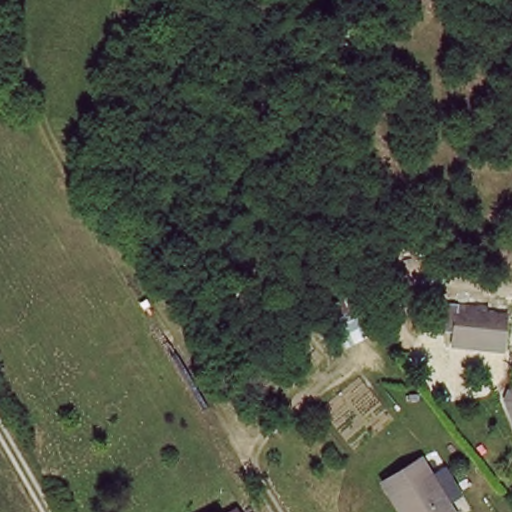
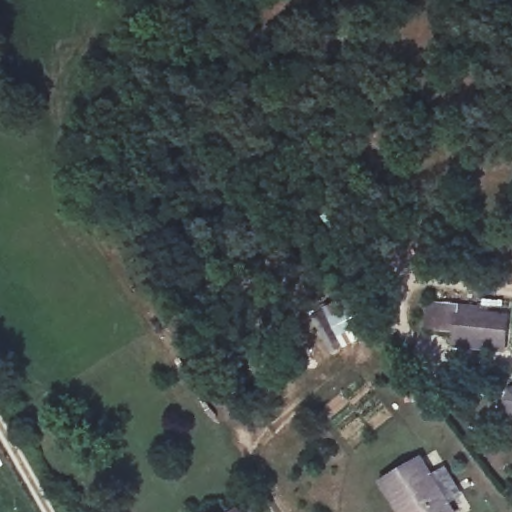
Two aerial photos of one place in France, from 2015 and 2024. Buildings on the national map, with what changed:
unchanged [(323,214),(337,196),(378,237),(358,257),(323,214)]
unchanged [(378,328),(351,339),(340,343),(323,311),(364,289),(383,326),(378,328)]
unchanged [(459,333),(446,333),(445,300),(512,310),(512,350),(458,347),(459,333)]
unchanged [(385,482),(425,457),(461,512),(412,512),(404,512),(385,482)]

